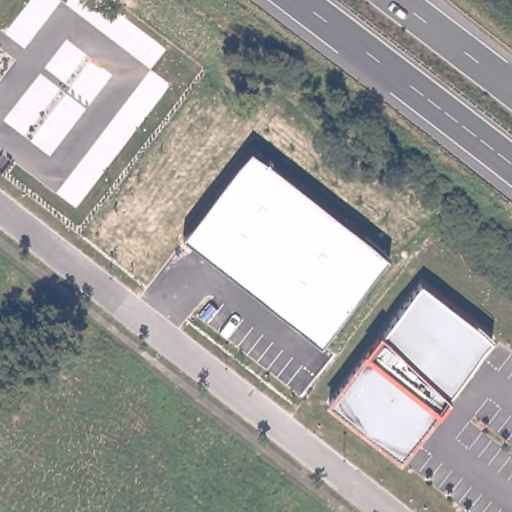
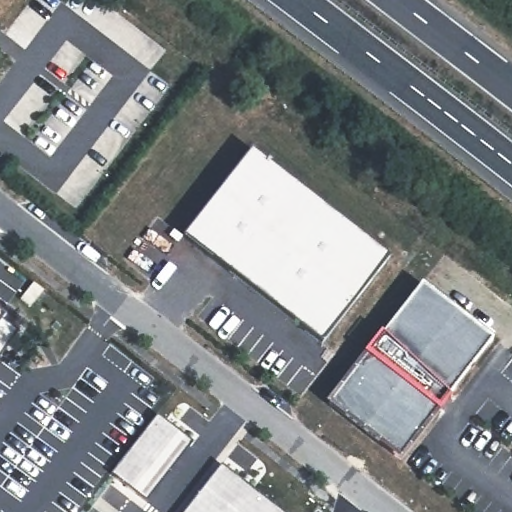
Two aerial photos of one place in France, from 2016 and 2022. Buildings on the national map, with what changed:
unchanged [(253,150),(390,255),(322,343),(185,236),(253,150)]
unchanged [(423,283),(493,338),(401,461),(326,402),(423,283)]
new [(4,315),(0,321),(0,313),(4,315)]
new [(16,331),(0,354),(0,323),(16,331)]
new [(158,414),(195,443),(147,502),(111,474),(158,414)]
new [(283,512),(185,512),(222,465),(283,512)]

